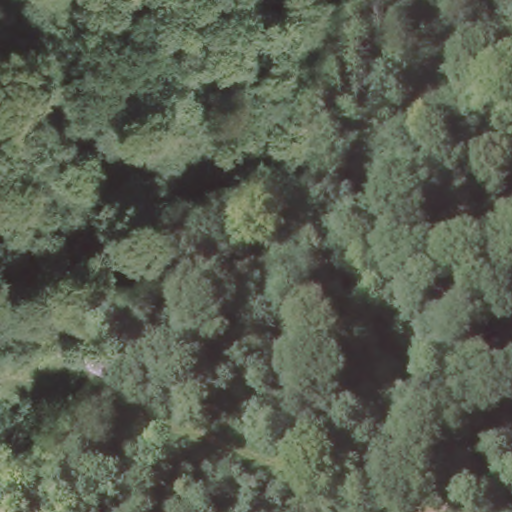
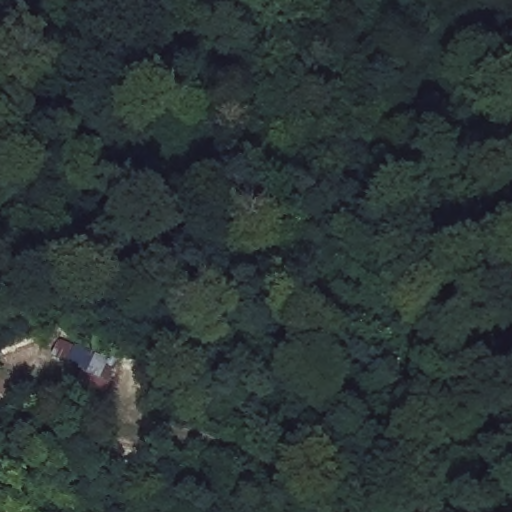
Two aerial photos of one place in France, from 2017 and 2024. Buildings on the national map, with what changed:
unchanged [(56,340),(92,348),(84,364),(53,357),(56,340)]

